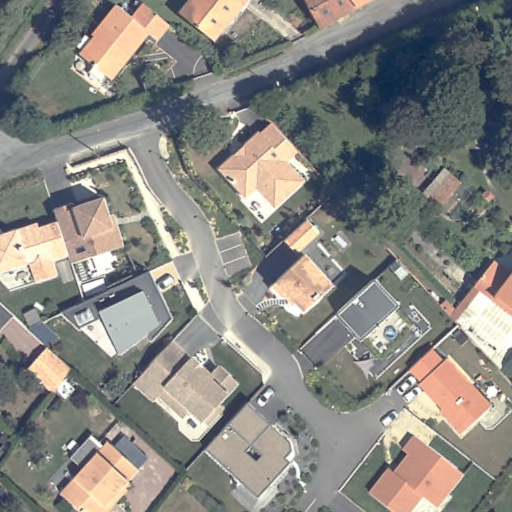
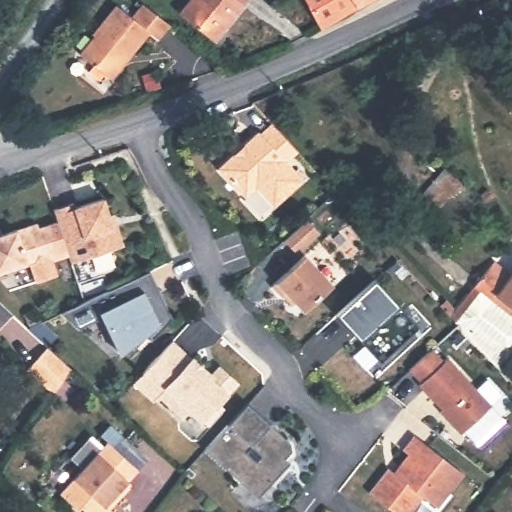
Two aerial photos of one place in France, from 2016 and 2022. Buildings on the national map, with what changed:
unchanged [(249,0),(215,40),(182,14),(194,0),(249,0)]
unchanged [(313,0),(374,0),(326,27),(313,0)]
unchanged [(170,26),(159,40),(148,31),(138,43),(141,45),(130,59),(127,58),(111,78),(82,58),(94,41),(94,36),(116,8),(131,19),(143,5),(170,26)]
unchanged [(289,138),(302,151),(291,161),(310,180),(281,208),(262,189),(252,200),(224,171),(263,133),(264,134),(275,123),(289,138)]
unchanged [(77,202),(79,206),(107,197),(117,226),(121,224),(127,245),(75,262),(57,208),(77,202)]
unchanged [(299,228),(310,218),(322,232),(311,242),(299,253),(287,239),(299,228)]
unchanged [(17,228),(37,221),(39,228),(58,221),(69,257),(54,262),(57,274),(36,281),(30,265),(0,275),(0,234),(17,228)]
unchanged [(311,254),(340,283),(312,310),(295,293),(291,297),(279,285),(311,254)]
unchanged [(512,268),(512,279),(498,296),(493,302),(485,293),(463,316),(456,309),(501,259),(512,268)]
unchanged [(146,273),(152,269),(164,295),(175,317),(154,338),(150,330),(123,350),(106,315),(81,327),(64,311),(87,300),(146,273)]
unchanged [(399,305),(420,327),(384,360),(361,340),(337,315),(376,278),(399,305)]
unchanged [(512,307),(498,296),(512,279),(512,307)]
unchanged [(485,293),(493,302),(498,296),(512,307),(512,357),(511,358),(463,316),(485,293)]
unchanged [(166,348),(174,340),(193,358),(194,357),(214,375),(222,366),(238,382),(221,401),(225,405),(209,423),(193,409),(186,416),(162,394),(157,399),(136,380),(166,348)]
unchanged [(433,348),(444,361),(448,358),(492,406),(462,434),(446,417),(448,415),(419,384),(421,382),(410,369),(433,348)]
unchanged [(70,372),(52,395),(26,372),(47,350),(70,372)]
unchanged [(239,412),(249,401),(292,441),(293,450),(287,457),(291,462),(259,497),(206,447),(239,412)]
unchanged [(466,471),(439,507),(425,497),(413,512),(396,512),(369,490),(388,467),(394,471),(408,453),(403,448),(416,432),(466,471)]
unchanged [(88,444),(99,455),(107,447),(137,475),(106,507),(110,511),(110,512),(75,512),(59,497),(82,473),(70,462),(88,444)]

